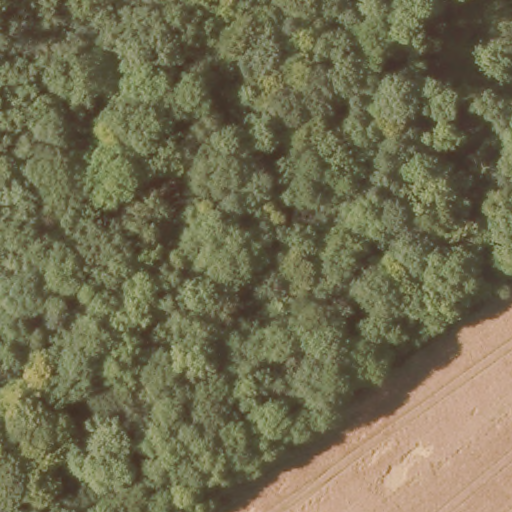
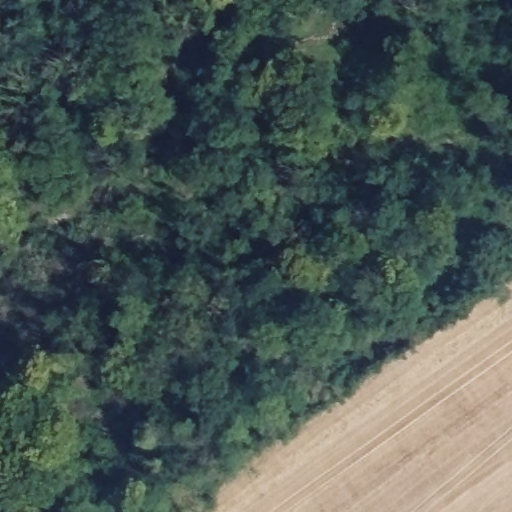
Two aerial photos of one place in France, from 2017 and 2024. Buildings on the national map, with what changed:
unchanged [(187,168),(149,175),(146,148),(185,142),(187,168)]

